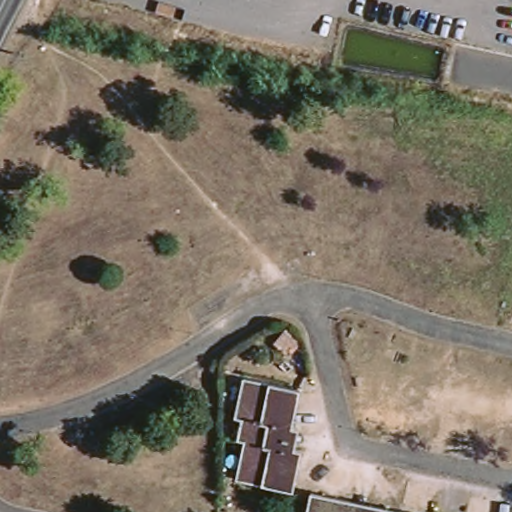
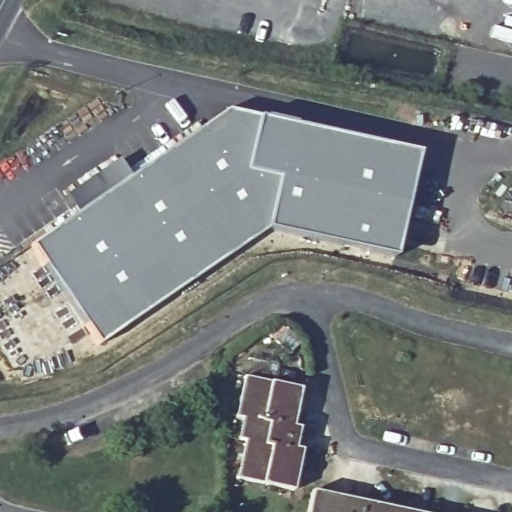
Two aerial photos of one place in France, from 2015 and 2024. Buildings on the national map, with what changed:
new [(398,256),(270,227),(100,341),(32,243),(227,110),(258,116),(420,152),(398,256)]
unchanged [(237,378),(295,390),(288,428),(236,419),(229,418),(237,378)]
unchanged [(236,419),(288,428),(293,429),(290,451),(232,438),(236,419)]
unchanged [(290,492),(231,481),(237,445),(231,442),(232,438),(290,451),(297,452),(290,492)]
unchanged [(345,503),(343,512),(303,512),(306,496),(345,503)]
unchanged [(343,512),(345,503),(367,507),(366,512),(343,512)]
unchanged [(389,512),(366,512),(367,507),(389,512)]

